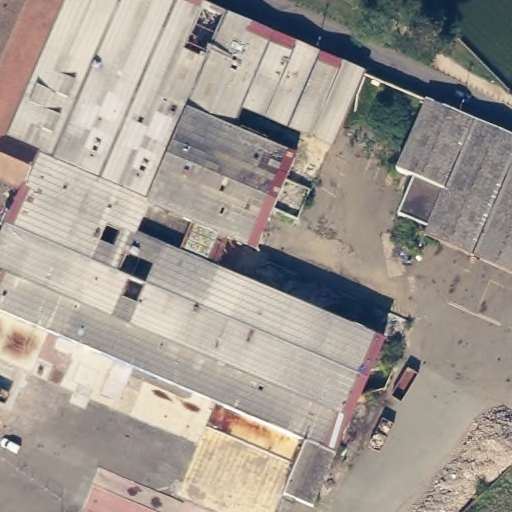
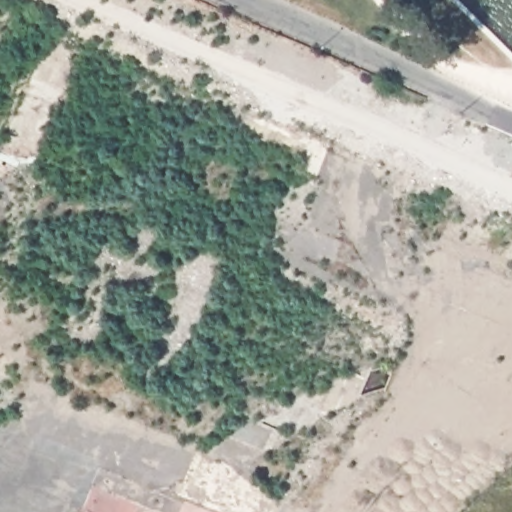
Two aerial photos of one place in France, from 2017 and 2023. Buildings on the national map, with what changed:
demolished [(278,32),(365,68),(350,105),(348,108),(261,70),(245,108),(238,127),(300,153),(261,244),(234,232),(219,263),(387,336),(317,502),(287,489),(277,512),(229,512),(189,495),(182,512),(82,512),(105,459),(22,424),(30,406),(23,400),(14,419),(0,413),(0,247),(26,185),(0,174),(0,0),(204,0),(278,32)]
demolished [(348,108),(334,145),(245,108),(261,70),(348,108)]
demolished [(427,222),(398,210),(413,173),(396,165),(425,94),(512,131),(512,269),(424,231),(427,222)]

